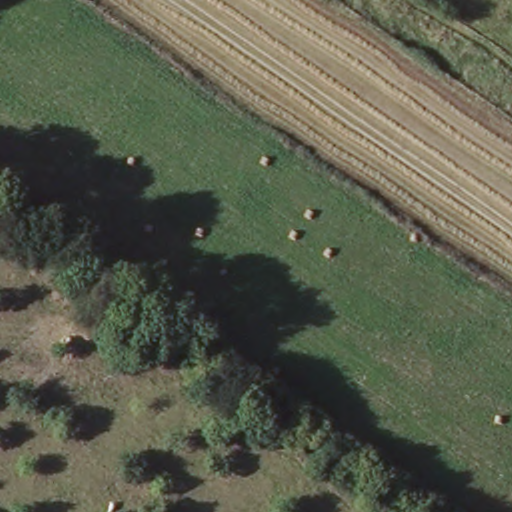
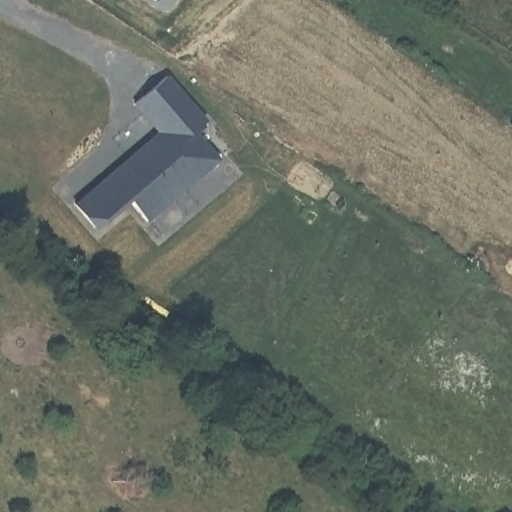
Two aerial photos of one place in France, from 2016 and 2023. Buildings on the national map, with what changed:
new [(149,221),(129,201),(96,228),(74,203),(159,132),(135,105),(169,73),(206,121),(195,131),(220,160),(149,221)]

